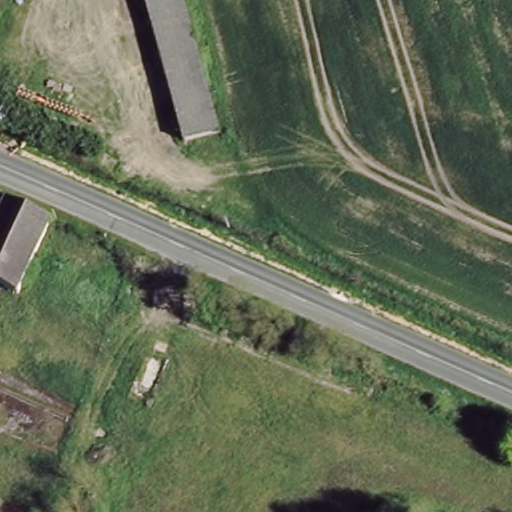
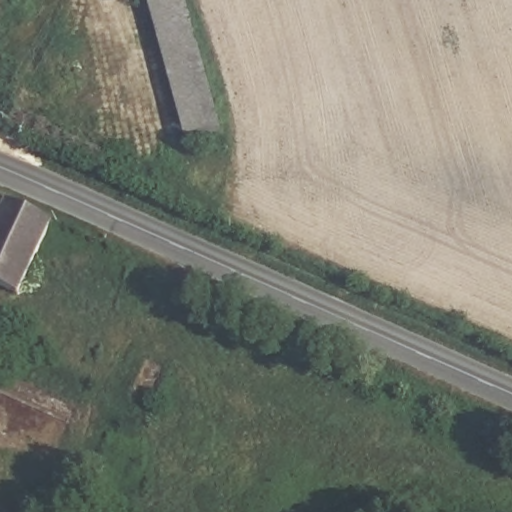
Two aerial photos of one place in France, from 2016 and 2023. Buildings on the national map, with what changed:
unchanged [(219,132),(183,142),(144,0),(182,0),(219,132)]
unchanged [(0,201),(48,221),(38,249),(20,290),(0,284),(0,201)]

